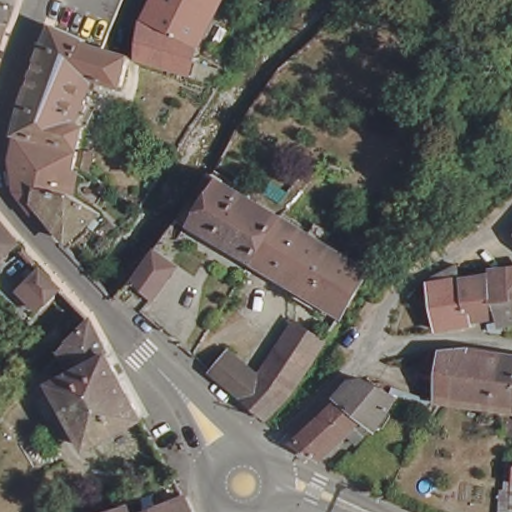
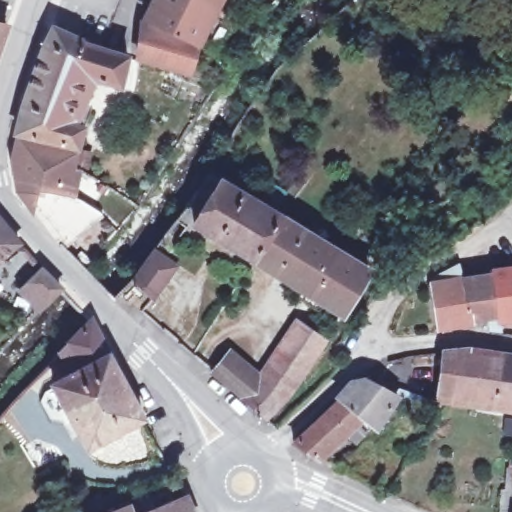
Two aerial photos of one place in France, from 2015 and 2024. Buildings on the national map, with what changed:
unchanged [(193,39),(143,14),(151,0),(211,0),(193,39)]
unchanged [(142,23),(194,46),(184,71),(137,56),(142,23)]
unchanged [(99,46),(125,58),(118,90),(85,79),(70,125),(82,129),(77,153),(19,135),(15,134),(25,97),(53,28),(99,46)]
unchanged [(77,153),(75,168),(71,199),(40,197),(33,205),(35,215),(20,196),(15,161),(19,135),(77,153)]
unchanged [(275,278),(192,228),(214,193),(205,186),(211,177),(222,184),(221,185),(246,200),(252,191),(255,193),(283,210),(278,220),(301,234),(275,278)]
unchanged [(71,199),(97,217),(66,244),(33,205),(40,197),(71,199)]
unchanged [(17,243),(0,256),(0,224),(17,243)]
unchanged [(301,234),(336,255),(340,248),(352,254),(347,263),(366,273),(340,317),(275,278),(301,234)]
unchanged [(160,259),(181,274),(155,304),(138,290),(160,259)]
unchanged [(512,273),(512,324),(500,326),(498,316),(489,275),(508,273),(512,273)]
unchanged [(429,289),(489,275),(498,316),(471,323),(472,329),(440,338),(429,289)]
unchanged [(40,278),(57,298),(45,311),(27,292),(40,278)]
unchanged [(62,350),(70,341),(90,324),(106,356),(141,419),(85,449),(50,383),(72,371),(62,350)]
unchanged [(233,354),(260,378),(299,325),(330,345),(313,367),(271,421),(243,398),(217,376),(233,354)]
unchanged [(442,355),(472,350),(512,357),(512,411),(432,408),(442,355)]
unchanged [(370,384),(380,388),(390,394),(395,390),(427,417),(424,425),(401,404),(373,433),(370,429),(342,403),(358,384),(370,384)]
unchanged [(295,444),(342,403),(370,429),(358,441),(350,434),(322,462),(295,444)]
unchanged [(503,462),(512,462),(512,512),(497,512),(503,462)]
unchanged [(189,497),(194,512),(153,512),(189,497)]

